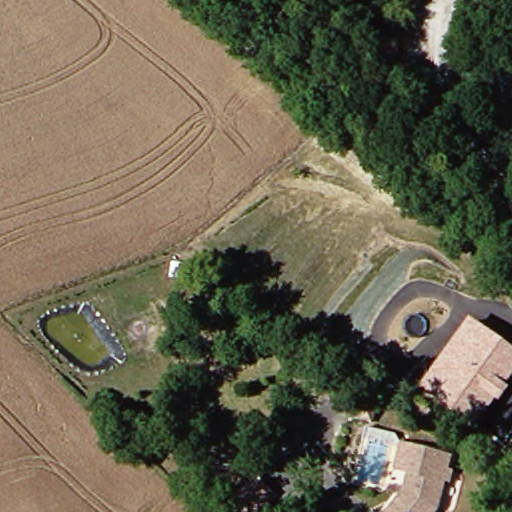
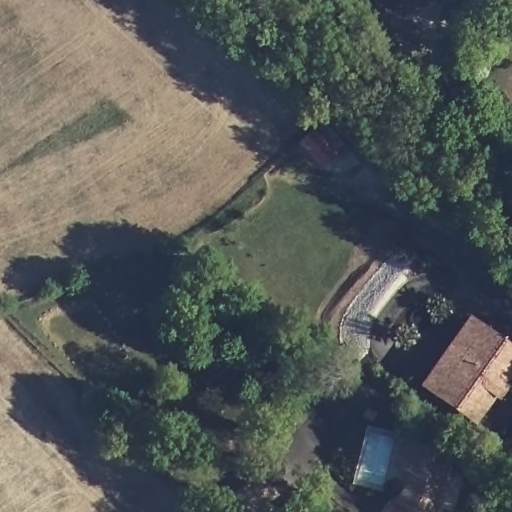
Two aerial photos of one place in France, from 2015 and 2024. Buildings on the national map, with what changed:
unchanged [(512,373),(476,427),(418,386),(467,318),(512,347),(512,373)]
unchanged [(388,512),(406,492),(409,475),(395,472),(402,446),(415,449),(435,454),(451,458),(449,466),(440,511),(440,512),(388,512)]
unchanged [(249,512),(244,506),(276,483),(289,501),(275,512),(249,512)]

